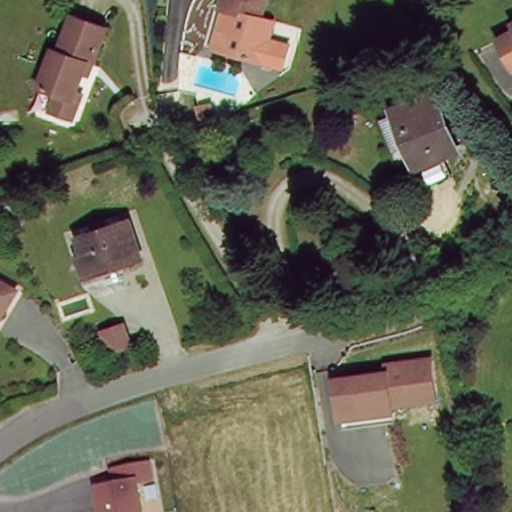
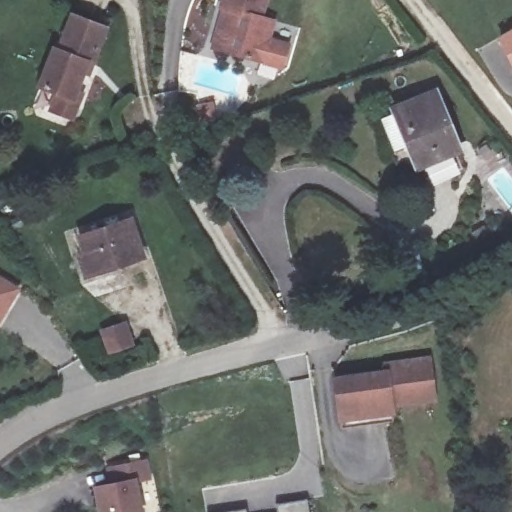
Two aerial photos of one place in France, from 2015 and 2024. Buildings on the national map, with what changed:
unchanged [(284,71),(255,58),(220,51),(227,12),(218,10),(220,0),(260,0),(257,17),(270,20),(266,38),(290,44),(284,71)]
unchanged [(82,115),(60,106),(65,89),(44,81),(58,42),(63,44),(77,10),(110,24),(96,58),(91,56),(79,95),(86,98),(82,115)]
unchanged [(435,93),(455,148),(412,160),(390,107),(435,93)]
unchanged [(129,222),(140,255),(95,271),(83,238),(129,222)]
unchanged [(18,288),(0,321),(0,278),(18,288)]
unchanged [(392,376),(391,369),(436,363),(442,403),(399,409),(401,427),(349,434),(341,383),(392,376)]
unchanged [(154,481),(136,485),(142,512),(97,512),(91,488),(112,482),(109,468),(150,460),(154,481)]
new [(307,501),(309,512),(280,512),(278,505),(307,501)]
new [(247,512),(236,512),(246,511),(247,512)]

